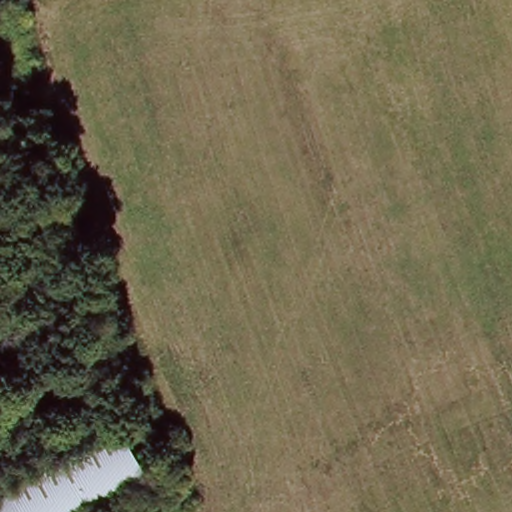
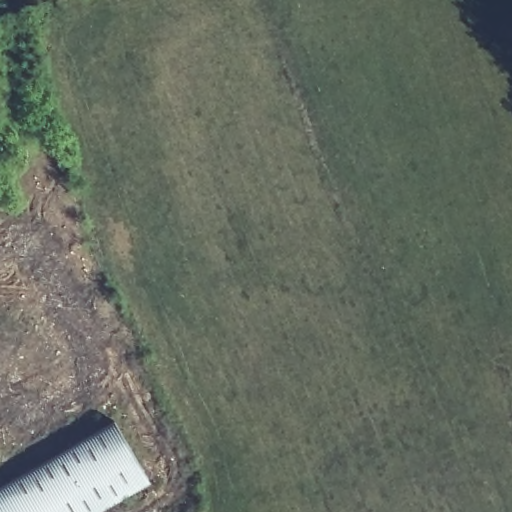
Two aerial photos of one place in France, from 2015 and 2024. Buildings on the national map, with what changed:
unchanged [(100,429),(106,440),(0,502),(0,482),(100,429)]
unchanged [(106,440),(131,493),(95,512),(1,512),(0,510),(0,502),(106,440)]

